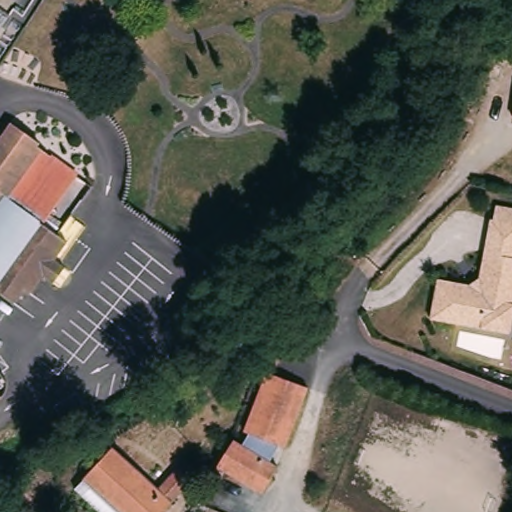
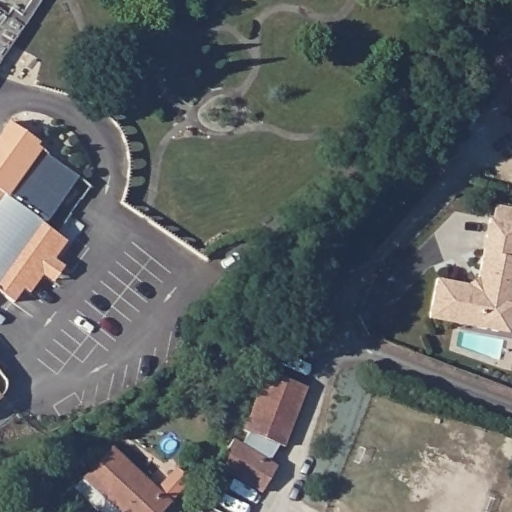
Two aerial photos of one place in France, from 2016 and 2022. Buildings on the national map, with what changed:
unchanged [(13,124),(42,145),(6,195),(0,204),(0,141),(13,124)]
unchanged [(42,145),(84,172),(45,224),(19,206),(32,190),(22,183),(10,199),(9,198),(6,195),(42,145)]
unchanged [(9,198),(10,199),(22,183),(32,190),(19,206),(45,224),(70,242),(34,294),(28,290),(17,304),(0,292),(0,210),(9,198)]
unchanged [(512,322),(510,334),(433,322),(440,280),(477,288),(488,224),(512,228),(512,322)]
unchanged [(230,446),(234,439),(242,444),(248,434),(245,432),(261,388),(264,380),(268,371),(309,388),(303,405),(300,414),(286,446),(281,444),(271,461),(279,467),(265,493),(219,465),(227,451),(230,446)]
unchanged [(5,382),(0,393),(0,376),(5,382)]
unchanged [(115,447),(161,489),(181,466),(194,478),(164,512),(105,512),(79,488),(115,447)]
unchanged [(215,473),(223,478),(217,487),(209,482),(215,473)]

